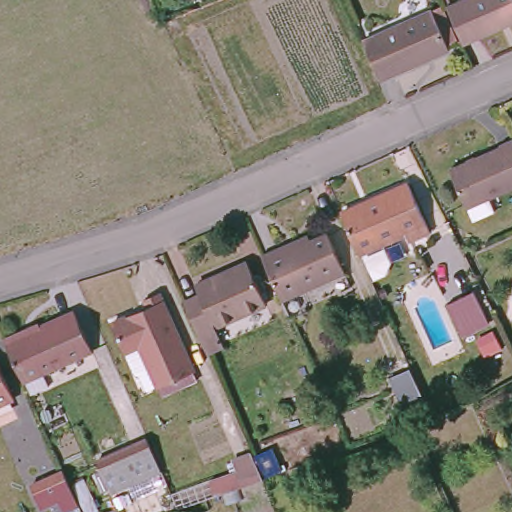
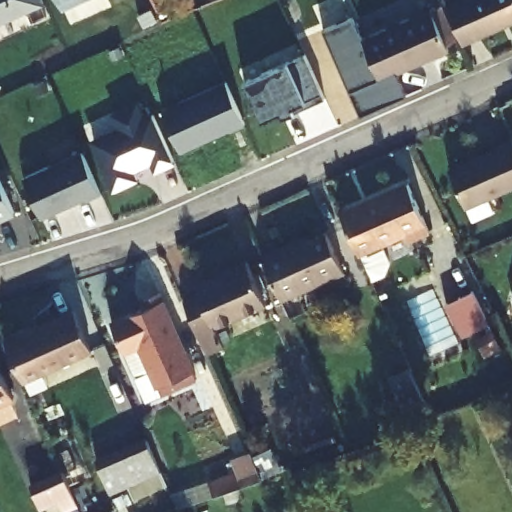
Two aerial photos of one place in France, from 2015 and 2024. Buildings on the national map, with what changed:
new [(42,0),(44,4),(0,24),(0,0),(42,0)]
new [(59,0),(81,0),(63,8),(59,0)]
unchanged [(512,0),(512,23),(465,44),(448,6),(463,0),(512,0)]
unchanged [(442,7),(459,44),(450,48),(452,50),(383,82),(365,43),(434,11),(442,7)]
new [(323,31),(354,18),(365,43),(383,82),(397,75),(407,95),(360,115),(323,31)]
new [(281,112),(263,120),(247,83),(288,63),(305,55),(325,99),(295,112),(285,117),(281,112)]
new [(162,114),(227,82),(247,124),(181,152),(162,114)]
new [(151,164),(135,171),(140,180),(113,191),(92,140),(118,129),(111,115),(139,103),(145,119),(152,115),(175,163),(155,172),(151,164)]
unchanged [(450,172),(502,150),(500,148),(512,142),(512,189),(467,209),(450,172)]
new [(24,179),(82,153),(100,193),(42,219),(24,179)]
unchanged [(405,181),(427,231),(408,240),(405,230),(356,252),(338,212),(405,181)]
new [(14,215),(0,221),(0,182),(14,215)]
unchanged [(260,259),(288,245),(290,250),(325,235),(342,275),(278,303),(260,259)]
unchanged [(204,353),(182,299),(197,293),(192,284),(245,262),(263,305),(213,327),(221,346),(204,353)]
unchanged [(162,393),(158,383),(141,343),(125,349),(113,317),(144,305),(145,307),(151,304),(147,295),(163,288),(178,324),(176,325),(195,369),(198,378),(162,393)]
unchanged [(473,299),(487,326),(458,338),(447,311),(473,299)]
unchanged [(5,342),(75,311),(91,351),(23,381),(5,342)]
unchanged [(0,406),(0,366),(15,400),(0,406)]
unchanged [(425,404),(406,413),(392,379),(410,370),(425,404)]
unchanged [(110,488),(100,459),(157,441),(170,468),(110,488)]
unchanged [(215,494),(210,479),(234,469),(231,461),(250,454),(262,479),(215,494)]
unchanged [(63,471),(78,504),(63,511),(58,499),(40,507),(31,485),(63,471)]

